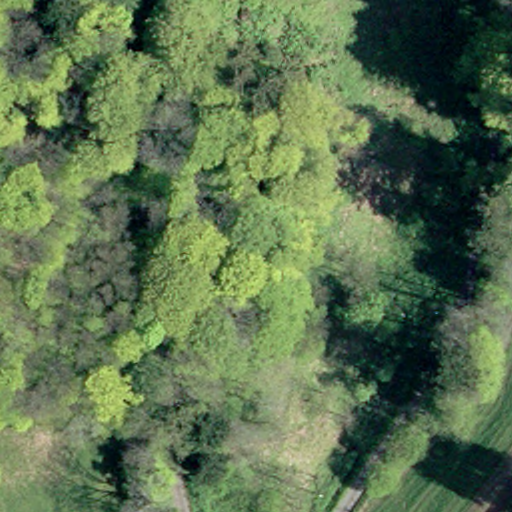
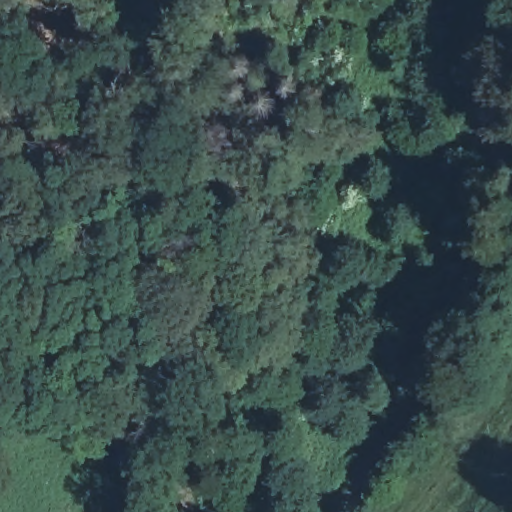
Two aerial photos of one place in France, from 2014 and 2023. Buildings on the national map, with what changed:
[]

